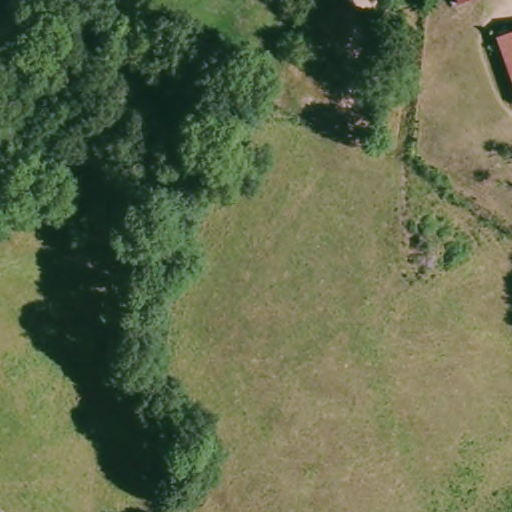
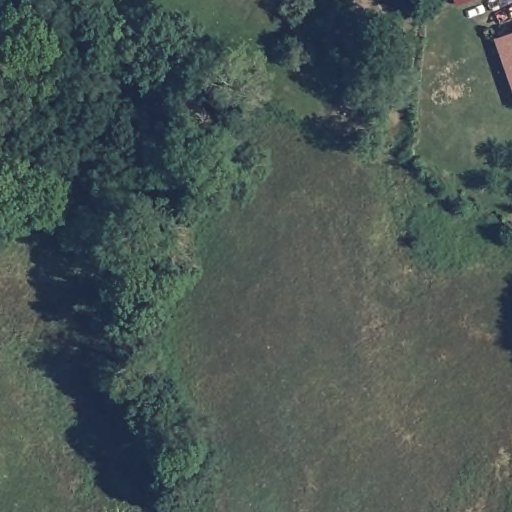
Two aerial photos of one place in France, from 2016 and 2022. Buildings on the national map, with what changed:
unchanged [(455,0),(479,0),(457,7),(455,0)]
unchanged [(512,35),(512,83),(497,41),(512,35)]

